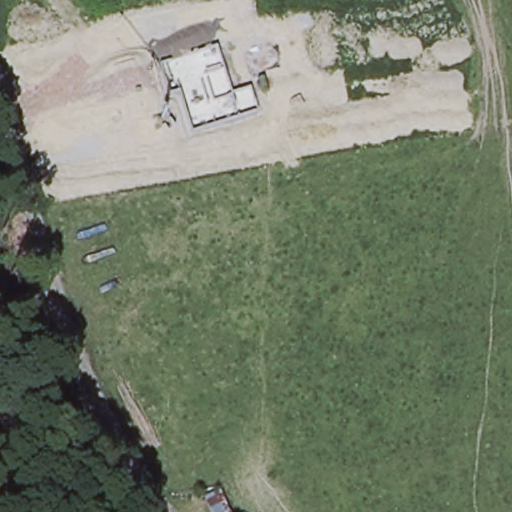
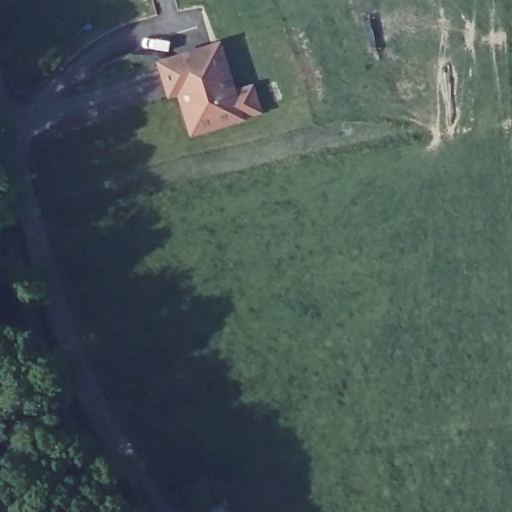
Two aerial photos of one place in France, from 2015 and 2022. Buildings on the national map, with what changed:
new [(221,40),(237,89),(254,82),(262,112),(246,117),(191,135),(178,95),(168,97),(157,60),(221,40)]

